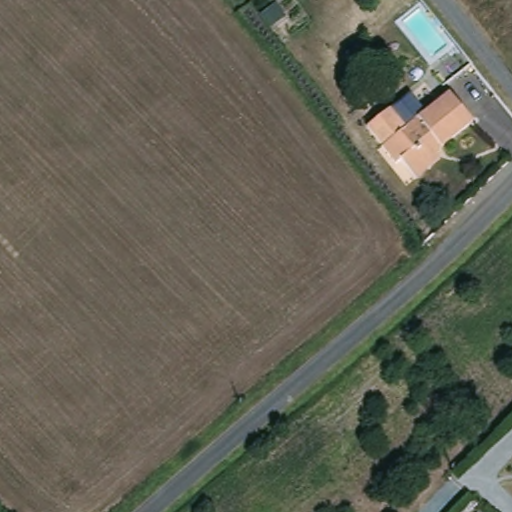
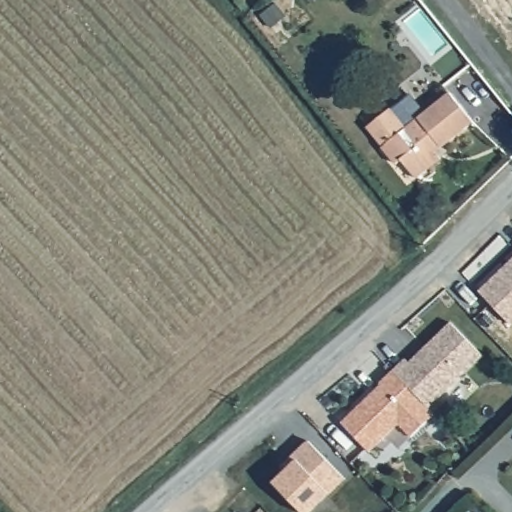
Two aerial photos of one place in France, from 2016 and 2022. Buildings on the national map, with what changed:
unchanged [(440,152),(445,157),(421,178),(406,160),(401,164),(387,147),(371,127),(394,109),(410,129),(454,92),(477,121),(440,152)]
new [(512,257),(512,324),(478,290),(503,265),(512,257)]
new [(404,357),(408,362),(449,322),(481,355),(427,407),(392,370),(404,357)]
new [(380,382),(379,381),(392,370),(427,407),(433,412),(409,436),(397,422),(368,451),(340,422),(380,382)]
new [(280,467),(290,456),(306,440),(343,476),(308,512),(303,512),(272,482),(284,471),(280,467)]

